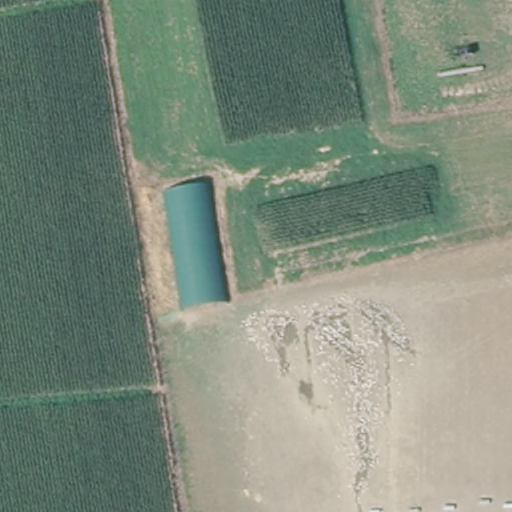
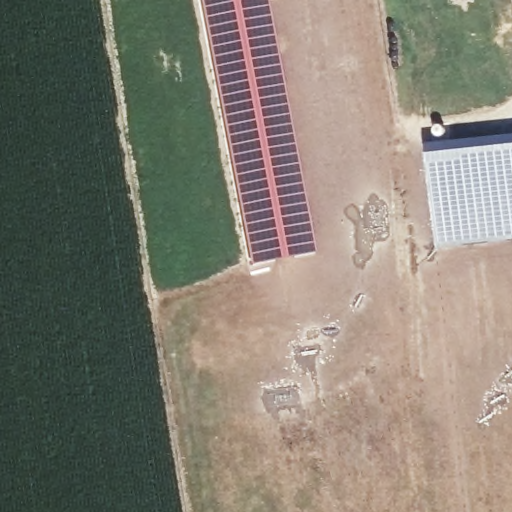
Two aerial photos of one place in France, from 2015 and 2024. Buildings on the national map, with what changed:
new [(250,265),(200,0),(269,0),(315,251),(250,265)]
new [(512,241),(437,249),(425,146),(512,136),(512,241)]

